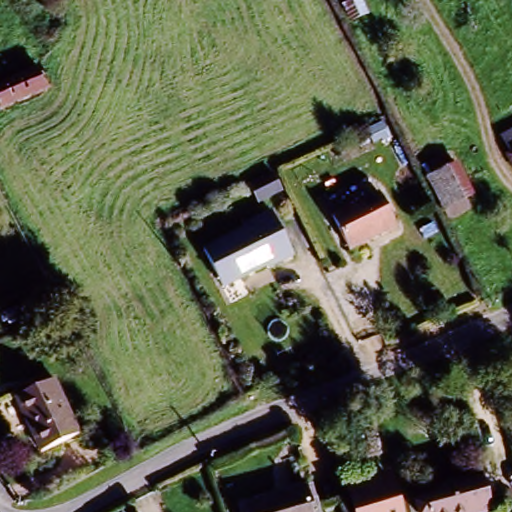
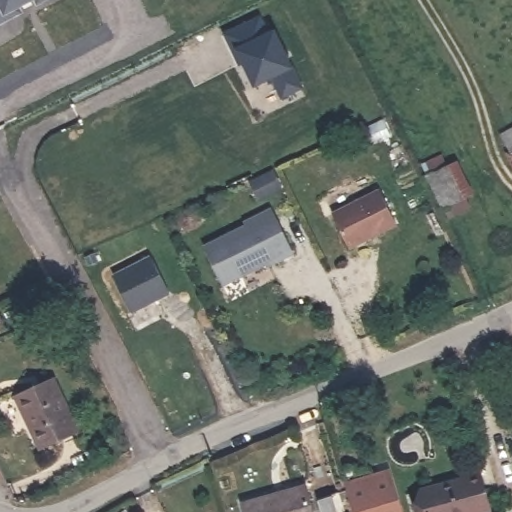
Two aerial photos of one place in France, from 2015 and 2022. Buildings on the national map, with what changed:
new [(10,12),(12,18),(0,24),(0,0),(34,0),(10,12)]
unchanged [(339,0),(364,0),(370,11),(347,23),(339,0)]
new [(277,32),(302,87),(282,96),(273,76),(255,84),(240,50),(245,61),(242,63),(237,51),(229,34),(262,18),(270,35),(277,32)]
demolished [(5,105),(0,93),(0,83),(37,66),(47,86),(5,105)]
unchanged [(512,127),(512,147),(504,132),(512,127)]
unchanged [(512,147),(512,163),(505,151),(512,147)]
unchanged [(424,173),(457,160),(478,210),(450,224),(424,173)]
unchanged [(338,221),(384,195),(401,226),(355,252),(338,221)]
unchanged [(227,284),(207,248),(246,224),(244,221),(272,206),(297,248),(271,263),(268,260),(227,284)]
new [(150,257),(170,292),(135,312),(115,277),(150,257)]
unchanged [(53,376),(75,428),(38,444),(15,392),(53,376)]
unchanged [(354,512),(347,482),(395,467),(407,512),(354,512)]
unchanged [(474,476),(485,509),(475,512),(419,512),(414,497),(474,476)]
unchanged [(299,482),(310,512),(244,512),(241,505),(299,482)]

